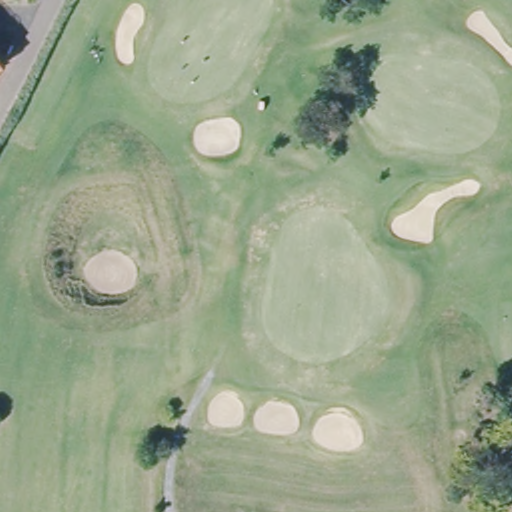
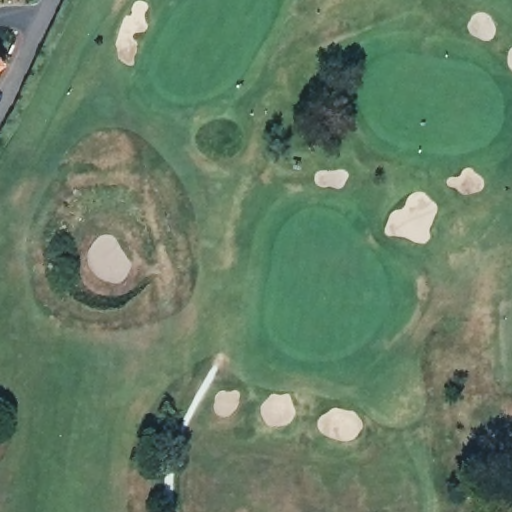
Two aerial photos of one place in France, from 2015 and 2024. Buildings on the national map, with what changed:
unchanged [(2,61),(5,66),(0,70),(0,59),(2,61)]

